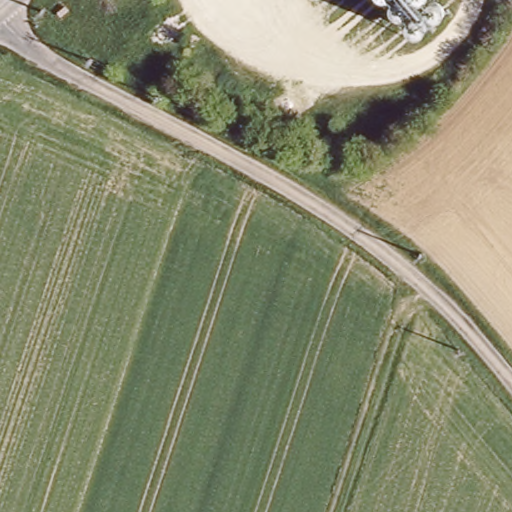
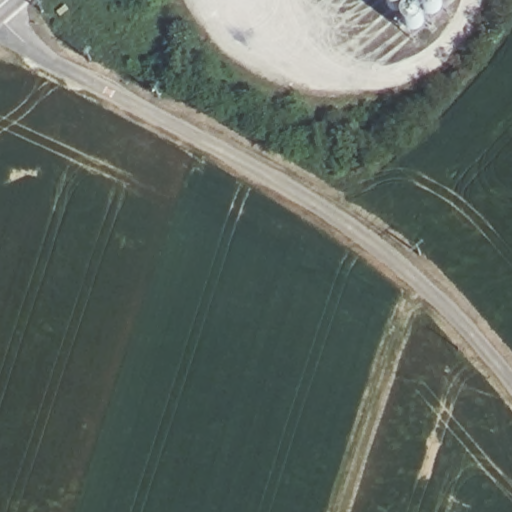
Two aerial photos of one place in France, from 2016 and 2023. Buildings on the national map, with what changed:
unchanged [(400,0),(400,1),(398,3),(395,4),(393,5),(390,5),(387,5),(385,3),(383,1),(382,0),(400,0)]
unchanged [(416,0),(437,0),(436,1),(435,4),(433,6),(431,6),(428,8),(425,8),(422,7),(420,6),(418,4),(416,1),(416,0)]
unchanged [(397,18),(396,15),(396,12),(397,10),(398,6),(400,5),(402,3),(405,1),(407,1),(410,1),(412,3),(415,4),(417,6),(418,9),(418,11),(418,15),(418,17),(416,20),(415,21),(412,23),(409,24),(406,24),(403,23),(401,22),(399,20),(397,18)]
unchanged [(432,12),(433,10),(435,7),(437,6),(440,5),(442,4),(445,4),(448,5),(450,7),(452,9),(453,11),(454,14),(453,17),(453,20),(451,22),(450,24),(447,26),(445,26),(441,26),(438,26),(436,25),(434,23),(432,20),(431,18),(431,15),(432,12)]
unchanged [(413,36),(412,34),(412,31),(413,28),(414,26),(416,24),(418,21),(420,21),(423,20),(426,21),(429,21),(431,23),(433,25),(435,28),(435,31),(435,34),(434,36),(432,39),(430,41),(428,42),(425,43),(422,43),(420,42),(417,41),(415,39),(413,36)]

